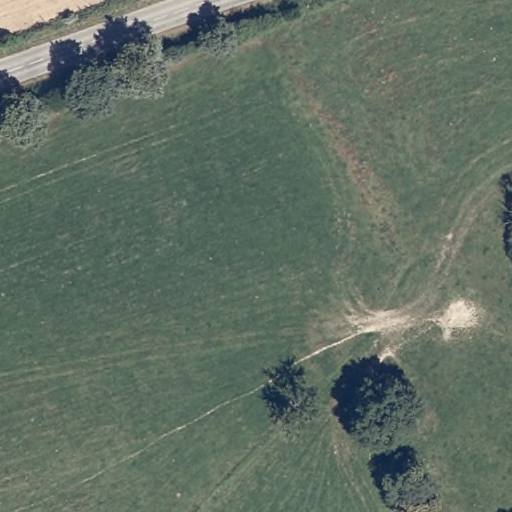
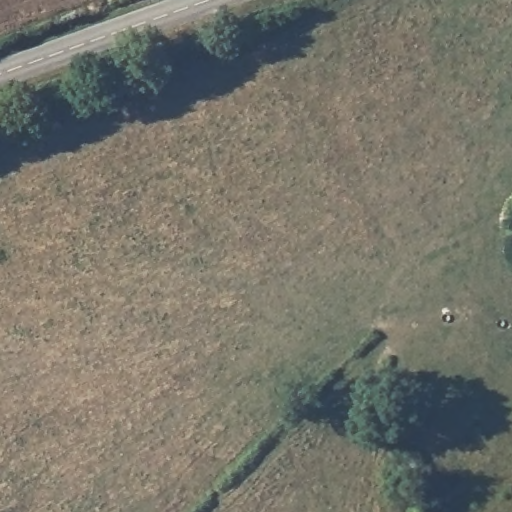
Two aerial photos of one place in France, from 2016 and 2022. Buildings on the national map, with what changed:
[]

